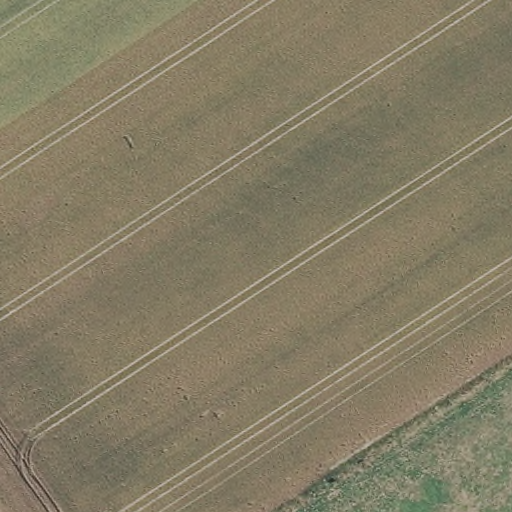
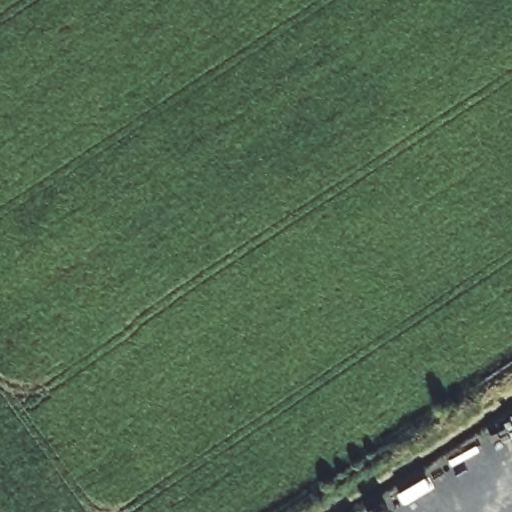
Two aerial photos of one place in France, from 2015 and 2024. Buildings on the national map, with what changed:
[]

